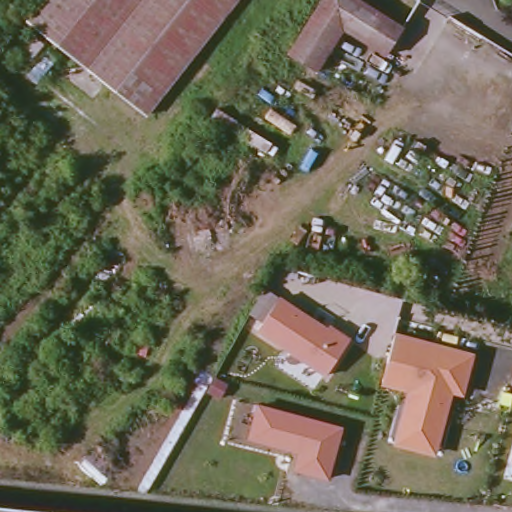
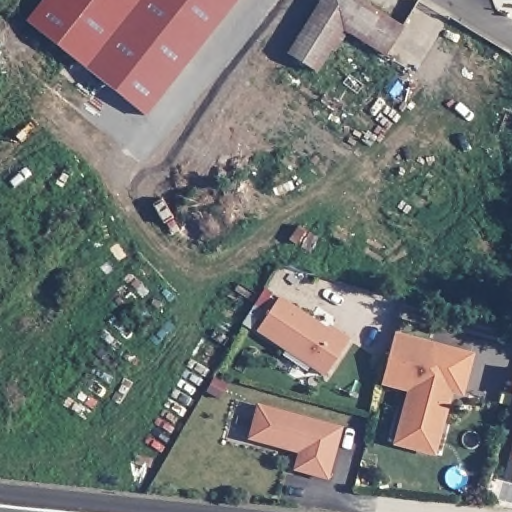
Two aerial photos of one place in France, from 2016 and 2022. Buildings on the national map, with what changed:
unchanged [(26,21),(43,0),(235,0),(144,114),(26,21)]
unchanged [(384,55),(343,29),(316,71),(287,53),(320,0),(360,0),(402,26),(384,55)]
unchanged [(256,328),(263,319),(248,309),(264,287),(279,295),(326,326),(329,322),(349,338),(324,375),(256,328)]
unchanged [(394,331),(473,352),(462,394),(449,391),(433,454),(393,444),(405,389),(381,383),(394,331)]
unchanged [(256,403),(341,426),(329,479),(292,469),(296,451),(246,437),(256,403)]
unchanged [(512,459),(509,459),(512,447),(512,459)]
unchanged [(130,512),(0,512),(0,499),(130,512)]

